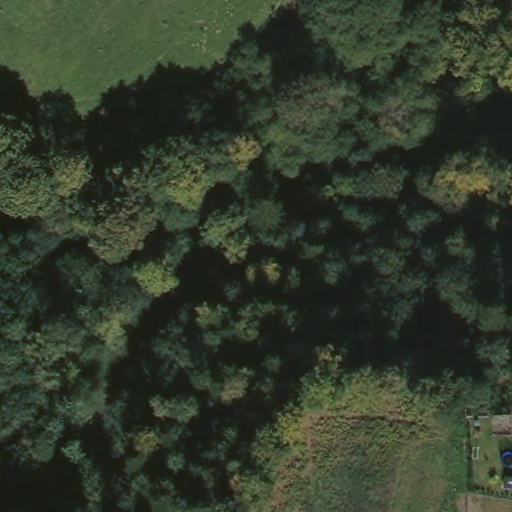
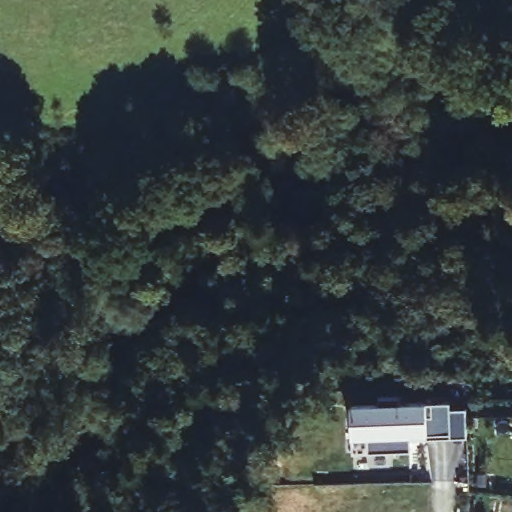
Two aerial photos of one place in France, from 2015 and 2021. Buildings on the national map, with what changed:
new [(467,441),(411,442),(411,454),(368,455),(367,437),(352,437),(352,406),(379,406),(379,398),(400,397),(401,406),(450,405),(450,411),(466,411),(467,441)]

